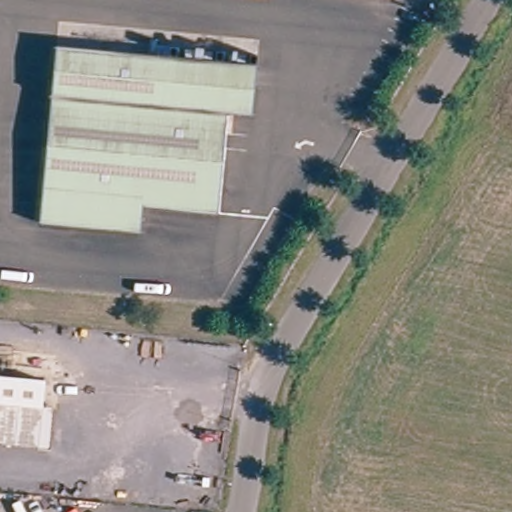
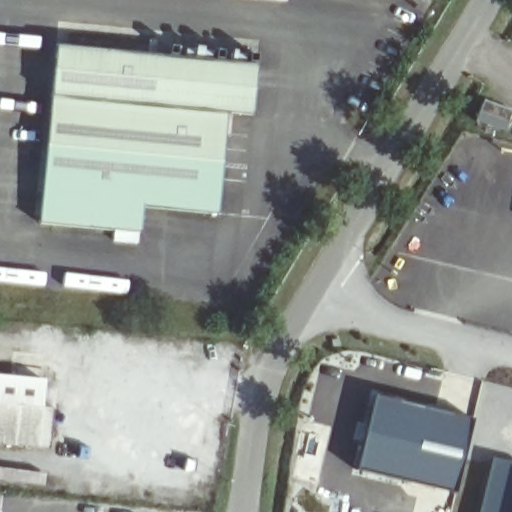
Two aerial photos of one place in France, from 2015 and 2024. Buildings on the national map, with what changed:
unchanged [(245,128),(220,126),(210,228),(135,221),(133,247),(32,237),(50,50),(250,68),(245,128)]
unchanged [(40,448),(0,444),(0,376),(46,380),(44,407),(56,408),(52,449),(40,448)]
new [(475,420),(457,493),(357,470),(375,396),(475,420)]
new [(512,465),(512,512),(479,512),(491,458),(512,465)]

